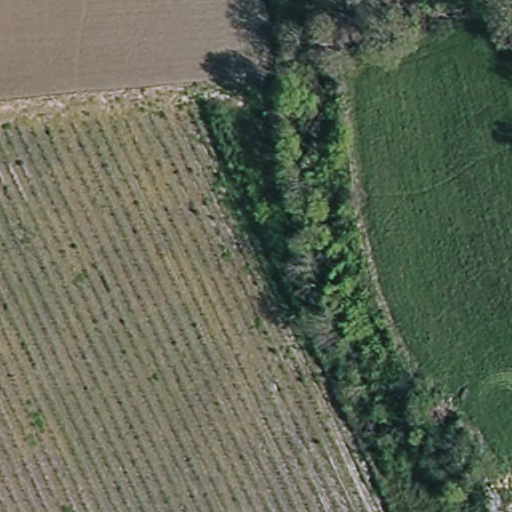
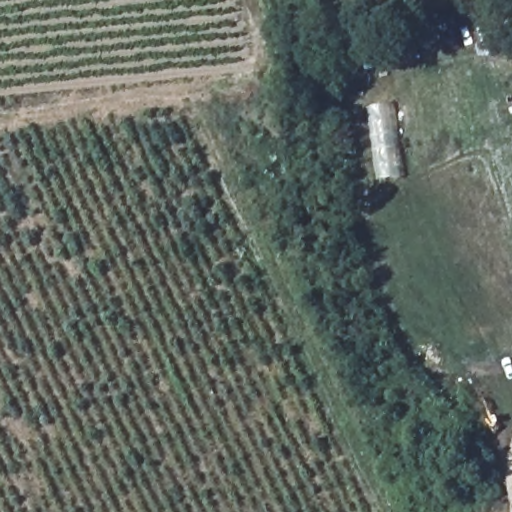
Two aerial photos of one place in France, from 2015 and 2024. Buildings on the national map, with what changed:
new [(375,179),(366,107),(396,104),(405,175),(375,179)]

